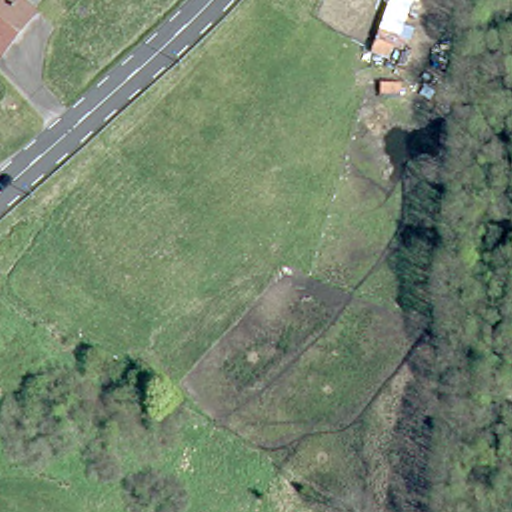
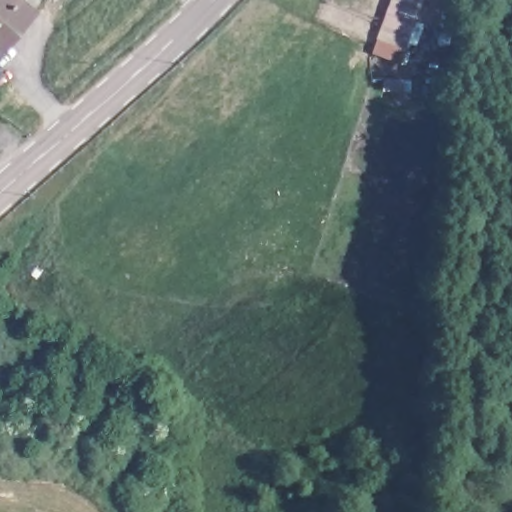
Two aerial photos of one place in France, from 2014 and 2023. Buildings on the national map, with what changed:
unchanged [(2,57),(0,54),(0,0),(12,0),(34,19),(2,57)]

